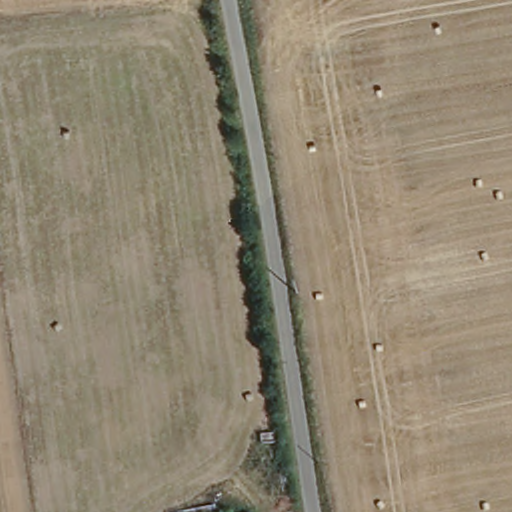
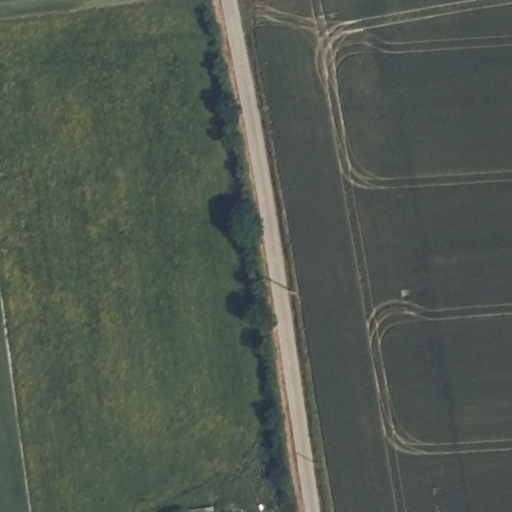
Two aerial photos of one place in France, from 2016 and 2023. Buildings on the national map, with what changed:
unchanged [(257,475),(252,447),(267,445),(272,472),(257,475)]

